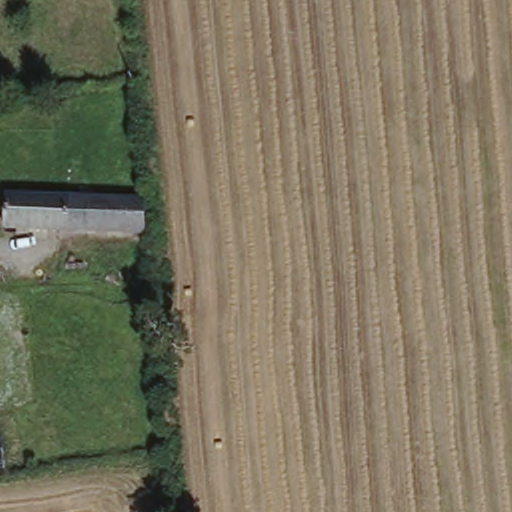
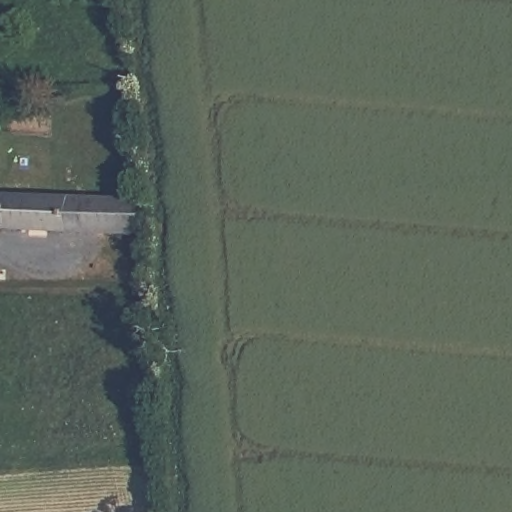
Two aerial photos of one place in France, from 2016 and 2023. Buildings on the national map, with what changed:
unchanged [(7,201),(138,205),(138,230),(138,237),(16,233),(6,234),(7,201)]

